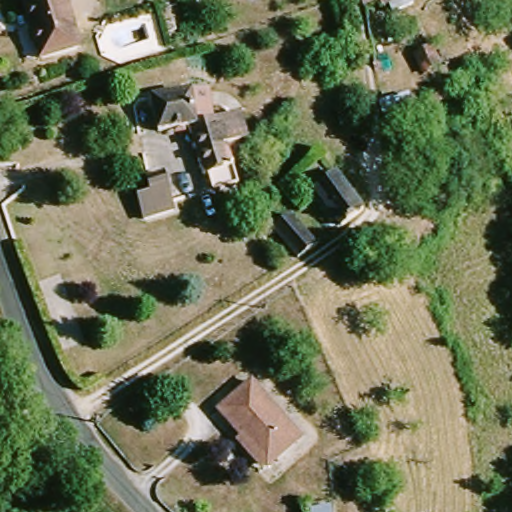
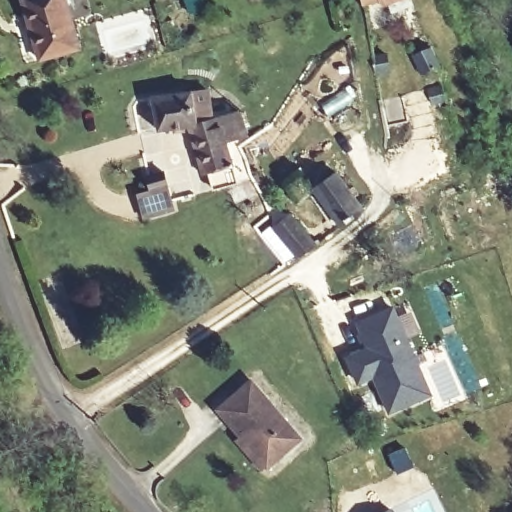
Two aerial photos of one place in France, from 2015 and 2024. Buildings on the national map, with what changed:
unchanged [(32,0),(66,0),(81,46),(46,58),(28,1),(32,0)]
unchanged [(360,0),(401,0),(362,8),(360,0)]
unchanged [(429,44),(433,65),(417,68),(413,48),(429,44)]
unchanged [(385,69),(370,71),(368,56),(383,54),(385,69)]
unchanged [(437,93),(420,96),(418,86),(435,81),(437,93)]
unchanged [(161,135),(151,105),(184,93),(192,125),(161,135)]
unchanged [(209,174),(192,125),(230,112),(240,143),(231,146),(238,165),(242,178),(217,186),(213,172),(209,174)]
new [(150,193),(145,180),(162,175),(171,210),(173,214),(143,223),(136,196),(150,193)]
unchanged [(314,192),(340,175),(367,213),(344,230),(314,192)]
unchanged [(299,268),(274,232),(290,221),(314,254),(299,268)]
new [(368,351),(358,325),(393,312),(426,398),(386,415),(371,378),(356,385),(346,359),(368,351)]
unchanged [(258,386),(299,443),(261,471),(239,439),(245,433),(227,409),(258,386)]
new [(391,512),(386,512),(390,510),(391,512)]

